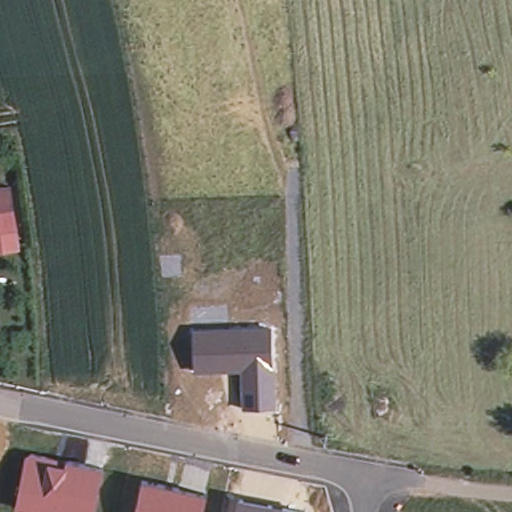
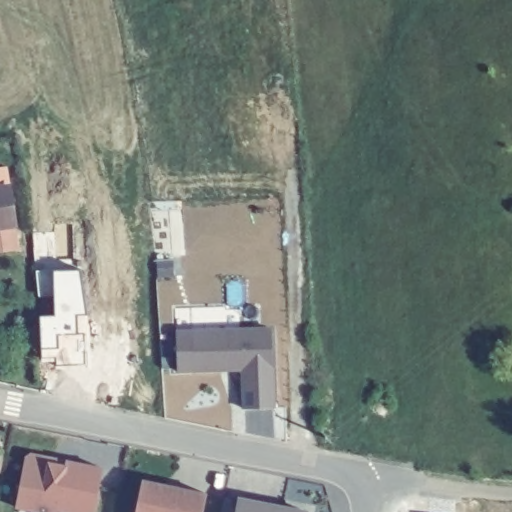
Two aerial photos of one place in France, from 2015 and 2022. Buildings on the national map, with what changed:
unchanged [(0,187),(9,186),(15,225),(18,249),(0,252),(0,187)]
new [(79,271),(87,316),(89,316),(89,327),(90,327),(91,348),(84,349),(84,365),(55,366),(55,361),(41,360),(39,317),(53,317),(53,271),(79,271)]
unchanged [(193,330),(194,331),(271,327),(273,369),(276,371),(278,408),(243,409),(240,372),(194,373),(193,330)]
unchanged [(104,468),(95,512),(36,512),(16,508),(28,453),(104,468)]
unchanged [(208,495),(204,512),(137,512),(143,481),(208,495)]
unchanged [(308,512),(237,512),(239,499),(308,512)]

